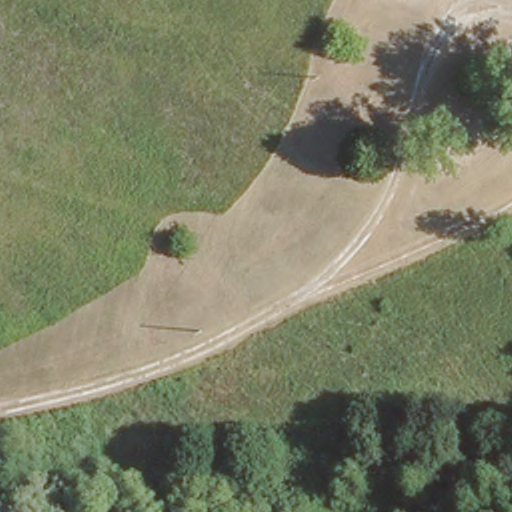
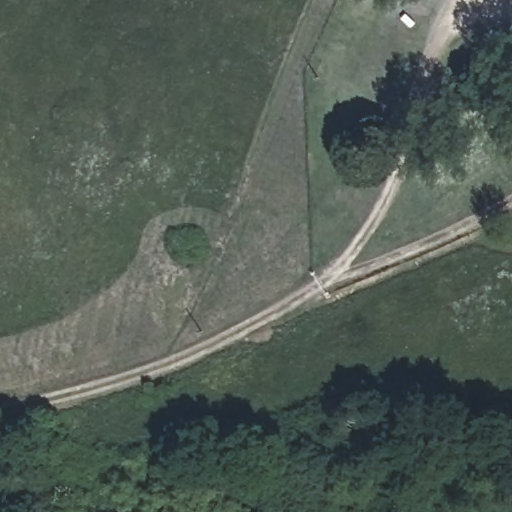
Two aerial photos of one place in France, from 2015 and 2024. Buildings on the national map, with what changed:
unchanged [(481,36),(472,60),(460,56),(468,32),(481,36)]

